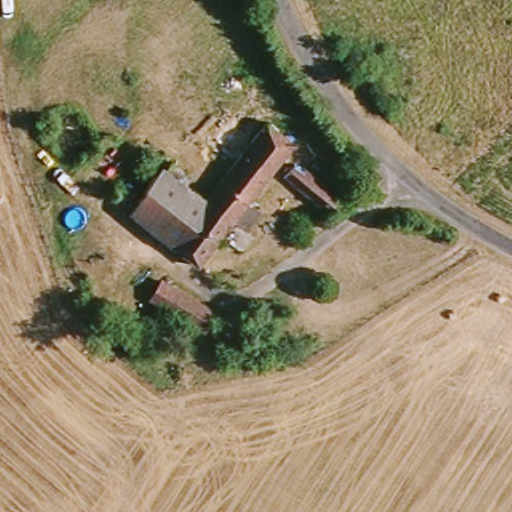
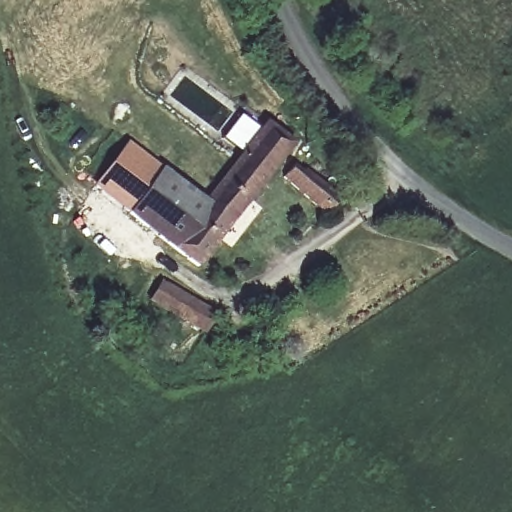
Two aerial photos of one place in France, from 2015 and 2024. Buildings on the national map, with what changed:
unchanged [(276,167),(235,221),(207,201),(266,120),(296,141),(276,167)]
new [(129,212),(95,185),(129,140),(162,169),(129,212)]
unchanged [(307,199),(300,193),(302,188),(293,180),(305,166),(344,196),(327,216),(307,199)]
unchanged [(200,266),(138,219),(129,212),(162,169),(207,201),(235,221),(200,266)]
unchanged [(150,299),(162,278),(223,318),(211,337),(150,299)]

